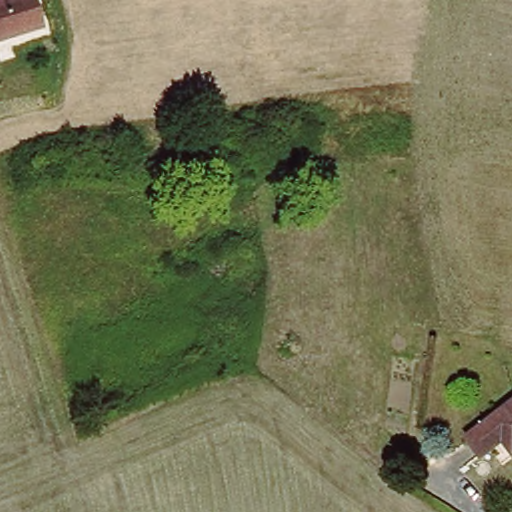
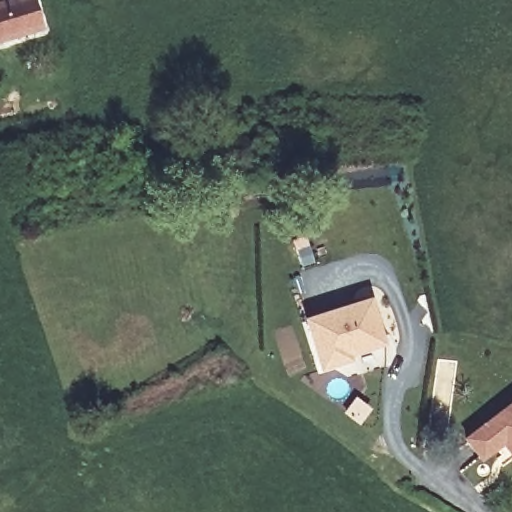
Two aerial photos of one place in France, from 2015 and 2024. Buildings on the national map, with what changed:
unchanged [(0,42),(0,0),(2,0),(2,1),(6,0),(39,0),(47,28),(0,42)]
new [(375,299),(388,342),(354,354),(355,358),(327,367),(311,318),(375,299)]
unchanged [(475,436),(512,407),(512,452),(510,456),(502,445),(488,455),(475,436)]

